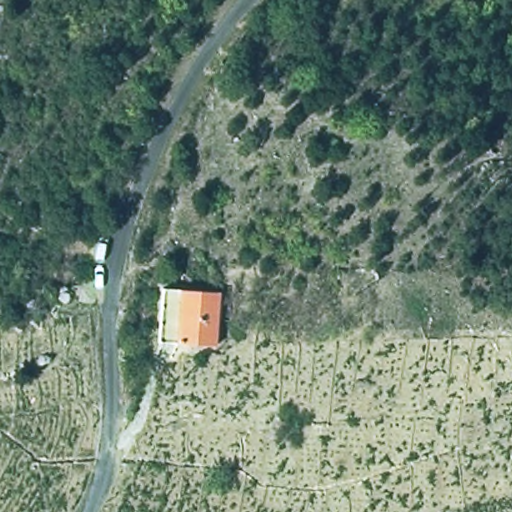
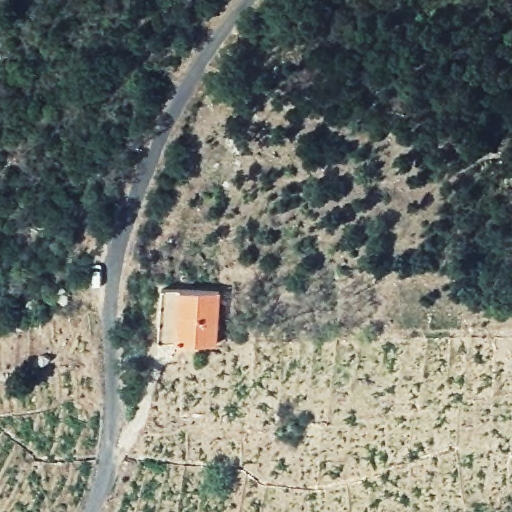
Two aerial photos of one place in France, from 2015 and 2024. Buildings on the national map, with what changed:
unchanged [(160,340),(162,287),(221,290),(217,343),(160,340)]

